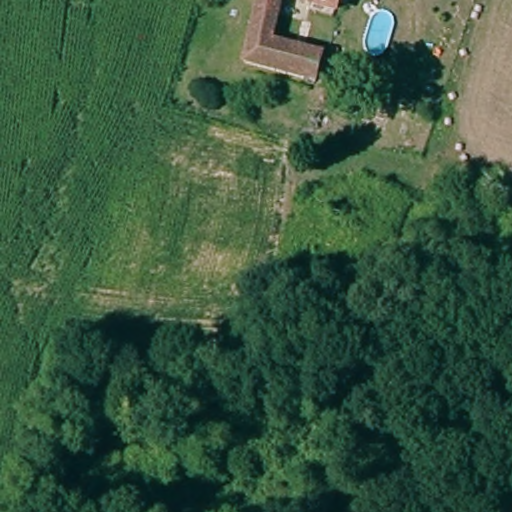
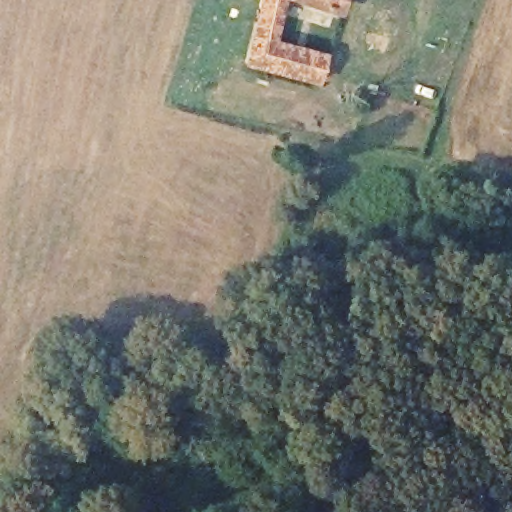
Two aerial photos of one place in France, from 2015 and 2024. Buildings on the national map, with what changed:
unchanged [(270,0),(289,0),(275,39),(332,60),(324,86),(316,84),(249,61),(270,0)]
unchanged [(345,18),(296,0),(351,0),(345,18)]

